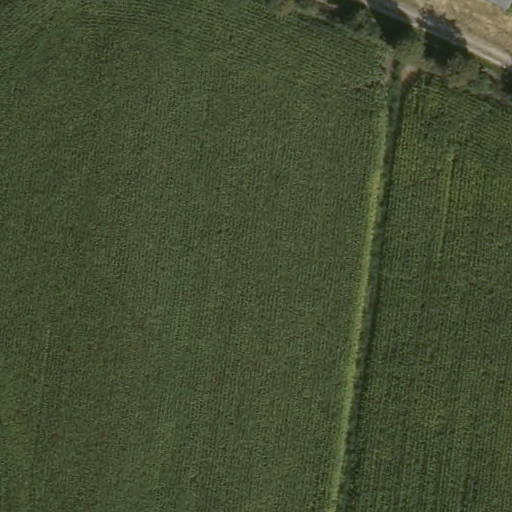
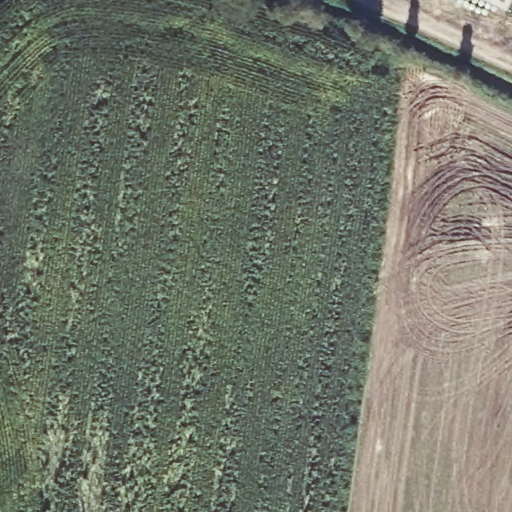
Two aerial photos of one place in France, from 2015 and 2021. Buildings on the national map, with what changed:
unchanged [(486,0),(512,0),(512,4),(509,11),(486,0)]

